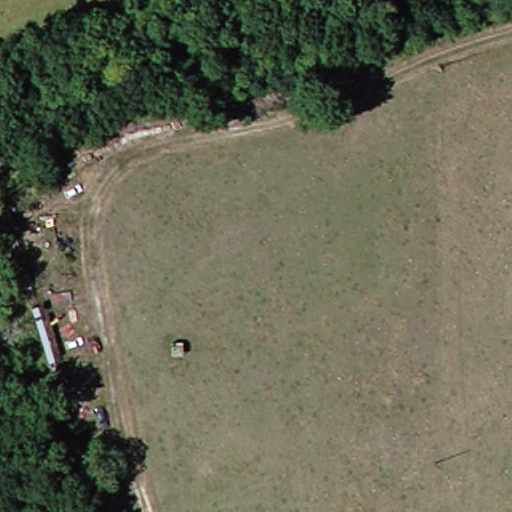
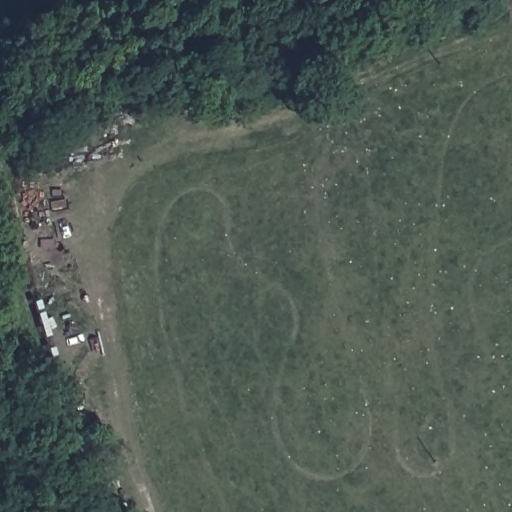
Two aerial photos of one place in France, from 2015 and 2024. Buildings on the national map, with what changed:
[]

